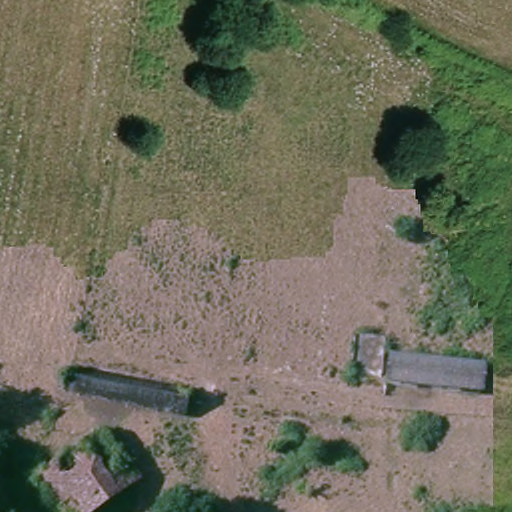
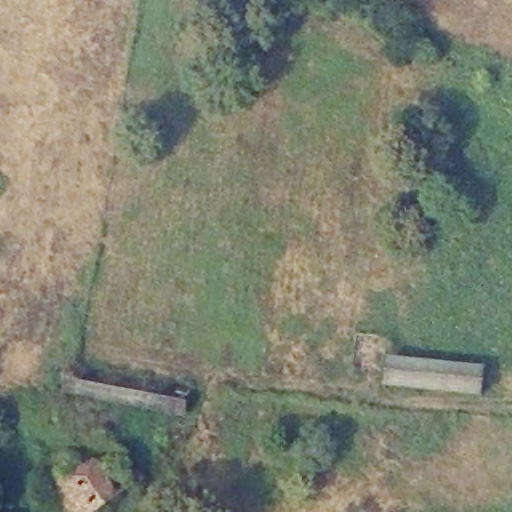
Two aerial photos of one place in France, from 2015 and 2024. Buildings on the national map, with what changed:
unchanged [(483,362),(483,388),(400,388),(392,388),(393,361),(404,361),(483,362)]
unchanged [(88,369),(192,389),(185,430),(168,427),(171,410),(74,392),(63,390),(67,366),(88,369)]
unchanged [(100,512),(66,512),(40,474),(109,427),(135,465),(149,455),(160,471),(100,512)]

